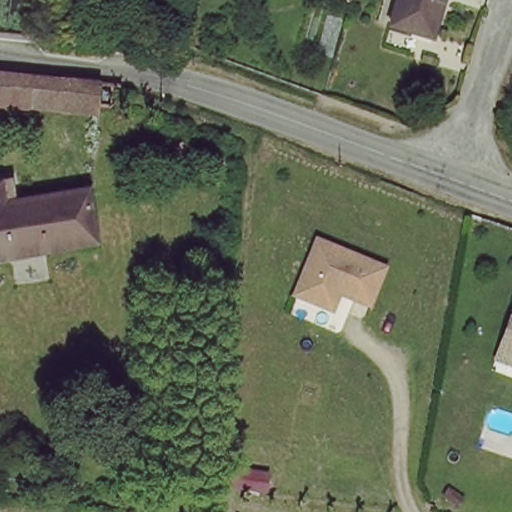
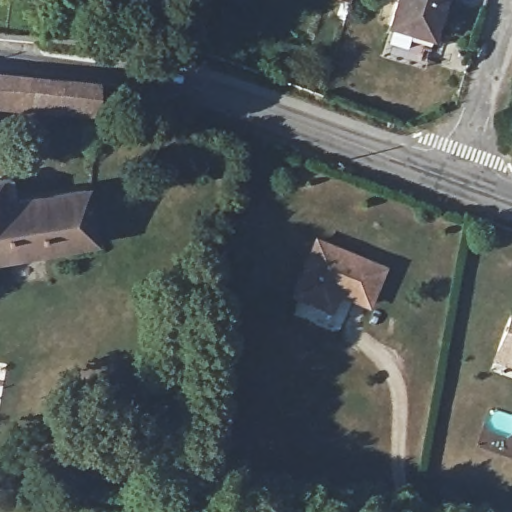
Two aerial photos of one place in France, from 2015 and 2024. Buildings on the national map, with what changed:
unchanged [(396,0),(442,0),(432,35),(390,22),(396,0)]
unchanged [(97,85),(94,115),(0,108),(0,77),(97,85)]
unchanged [(11,175),(16,201),(85,184),(97,239),(0,258),(0,178),(11,175)]
unchanged [(327,304),(297,293),(318,238),(386,264),(372,302),(341,290),(335,308),(327,304)]
unchanged [(507,317),(512,318),(512,364),(491,357),(495,349),(507,317)]

